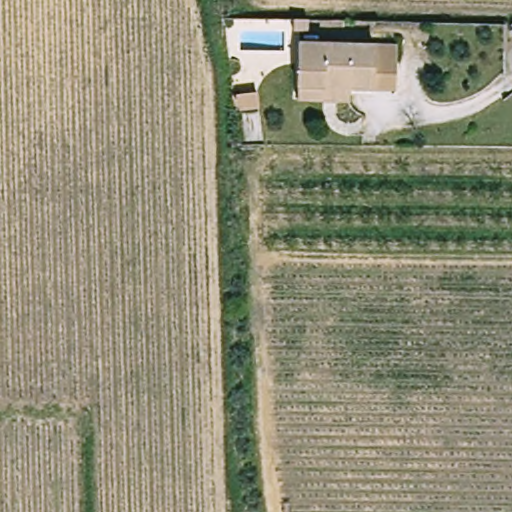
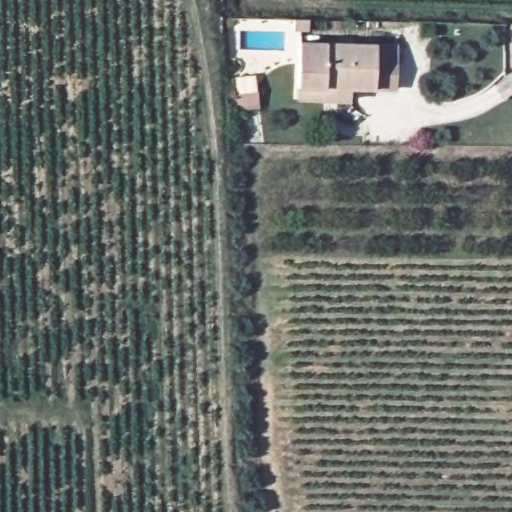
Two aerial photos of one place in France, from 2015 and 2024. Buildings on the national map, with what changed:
unchanged [(299,102),(299,89),(300,45),(400,46),(399,91),(351,91),(351,103),(299,102)]

